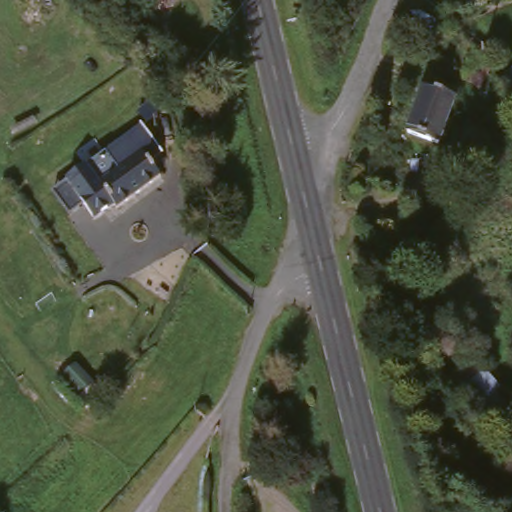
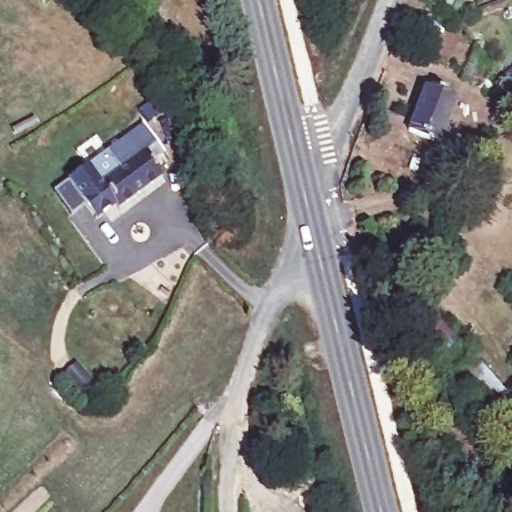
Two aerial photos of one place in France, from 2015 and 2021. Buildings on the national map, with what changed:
unchanged [(451,108),(434,150),(403,137),(421,96),(451,108)]
unchanged [(148,136),(140,124),(163,110),(170,121),(148,136)]
unchanged [(89,180),(99,195),(118,183),(106,164),(144,138),(163,165),(149,172),(160,190),(91,230),(68,193),(89,180)]
unchanged [(413,305),(443,337),(425,352),(396,320),(413,305)]
unchanged [(511,412),(486,434),(445,382),(469,361),(511,412)]

